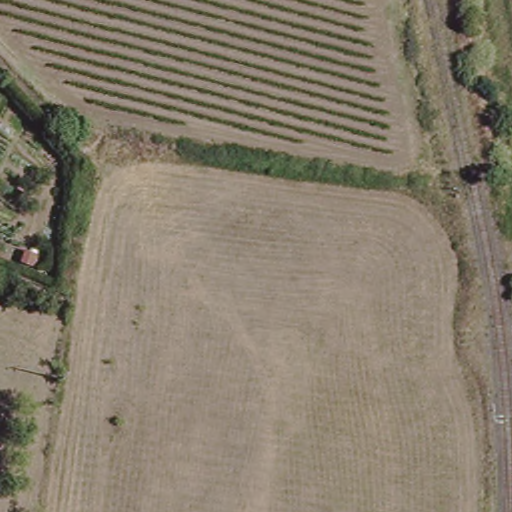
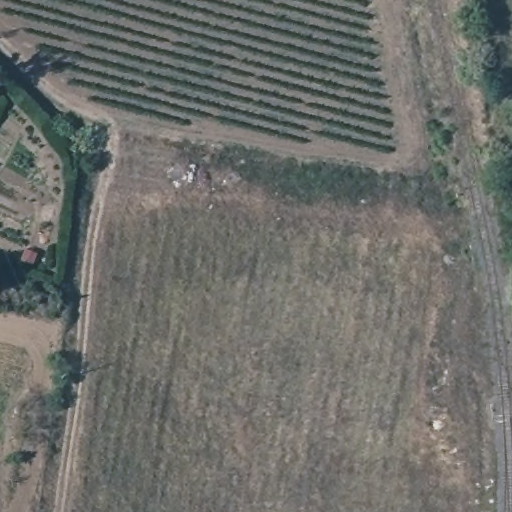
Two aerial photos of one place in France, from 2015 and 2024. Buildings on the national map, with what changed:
unchanged [(25,245),(39,251),(33,264),(19,258),(25,245)]

